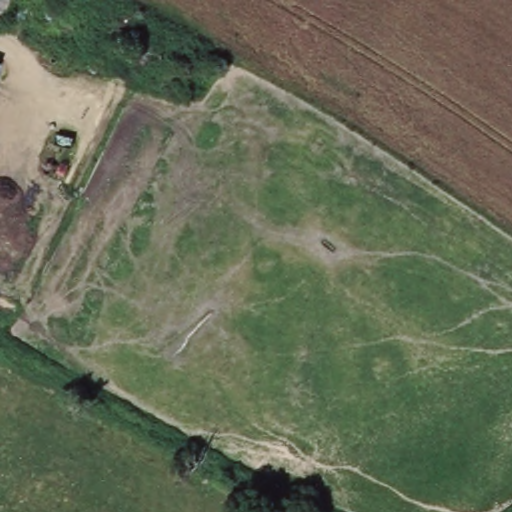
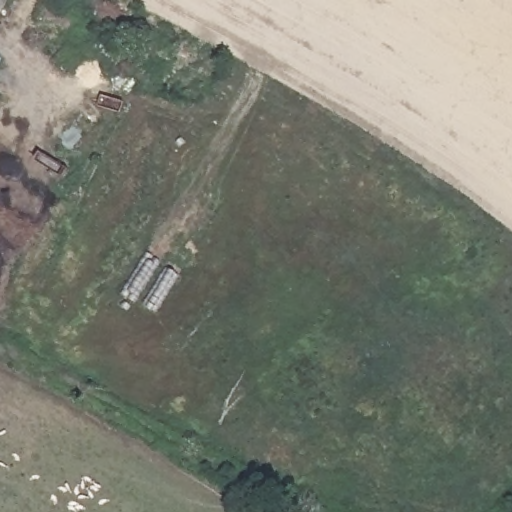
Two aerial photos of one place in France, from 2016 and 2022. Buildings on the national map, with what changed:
unchanged [(0,13),(0,0),(9,0),(4,14),(0,13)]

